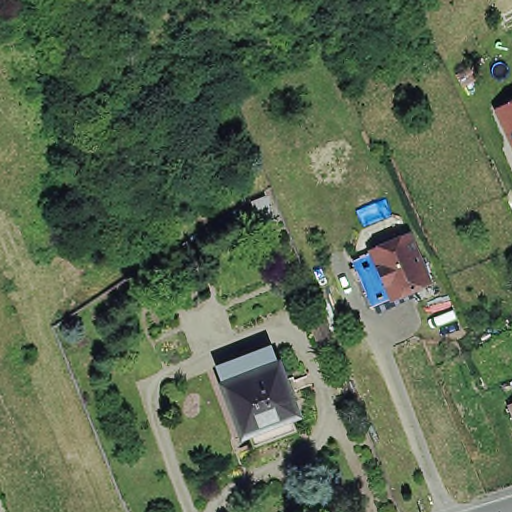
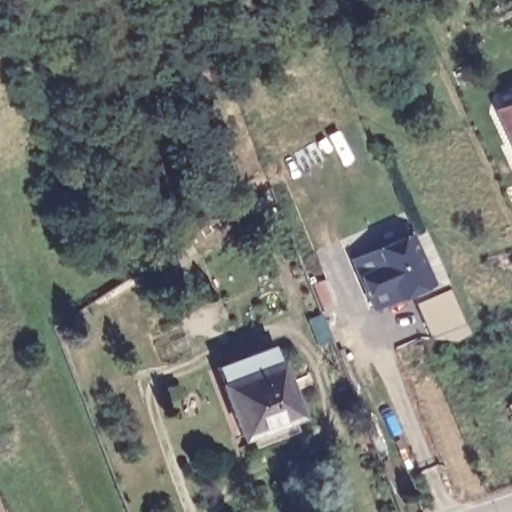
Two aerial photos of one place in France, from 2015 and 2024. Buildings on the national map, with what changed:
unchanged [(512,149),(493,110),(512,101),(512,149)]
unchanged [(271,196),(275,221),(262,223),(258,197),(271,196)]
unchanged [(370,271),(382,265),(375,247),(385,244),(402,235),(412,231),(430,273),(432,278),(422,282),(415,286),(405,290),(395,295),(382,300),(376,302),(363,274),(370,271)]
new [(465,325),(432,340),(416,305),(449,290),(465,325)]
unchanged [(212,364),(265,344),(272,360),(217,380),(212,364)]
unchanged [(248,442),(243,430),(236,432),(217,381),(217,380),(272,360),(292,411),(285,414),(290,427),(248,442)]
unchanged [(512,417),(509,410),(512,408),(512,417)]

